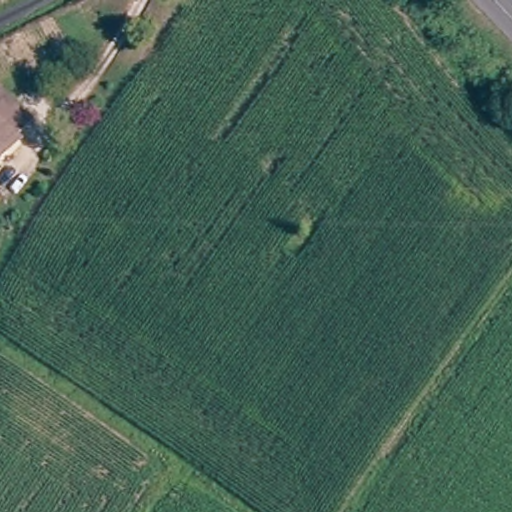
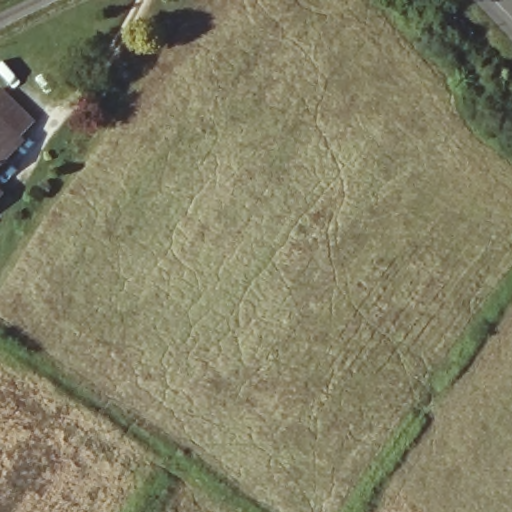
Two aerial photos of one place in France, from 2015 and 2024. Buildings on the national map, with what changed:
unchanged [(17,137),(20,140),(0,164),(0,90),(33,119),(17,137)]

